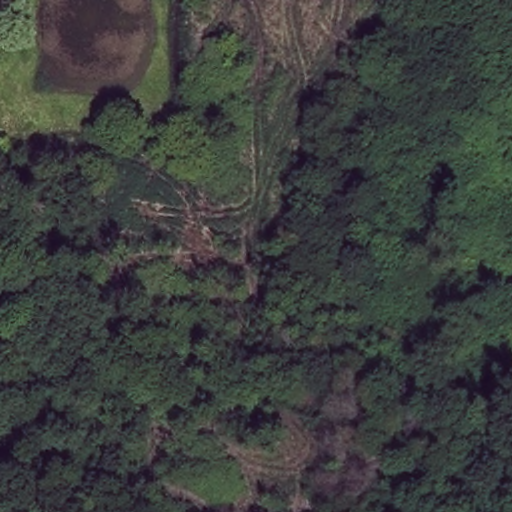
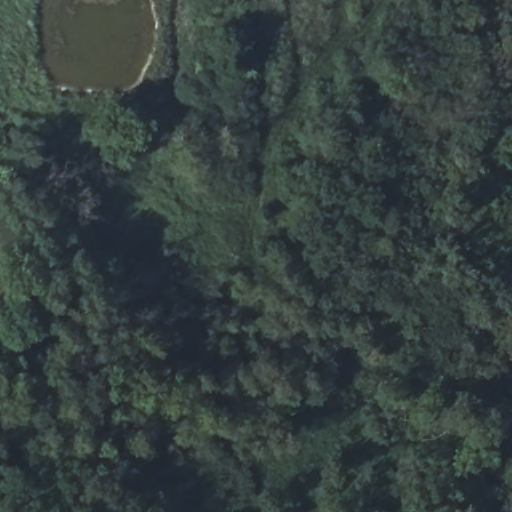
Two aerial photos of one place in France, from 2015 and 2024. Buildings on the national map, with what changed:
[]

